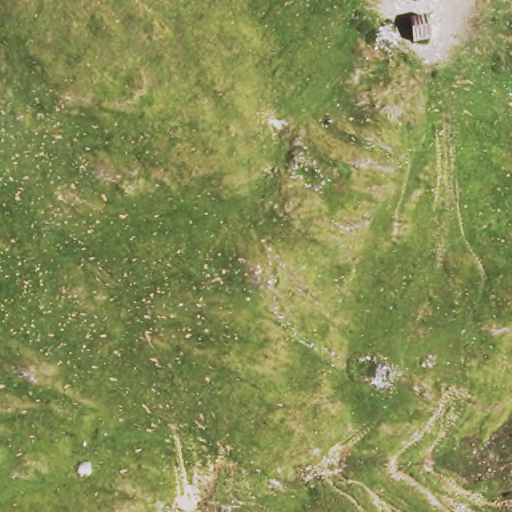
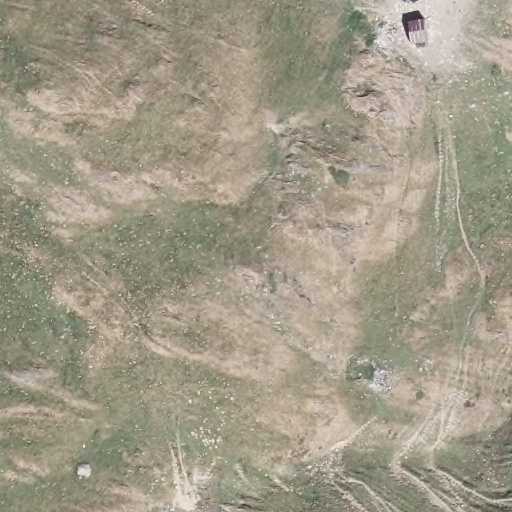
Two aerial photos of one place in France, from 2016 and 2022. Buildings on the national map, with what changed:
unchanged [(419,18),(429,18),(429,46),(407,48),(407,19),(419,18)]

